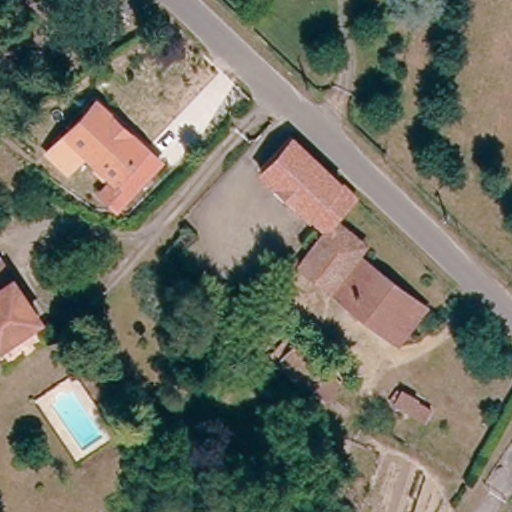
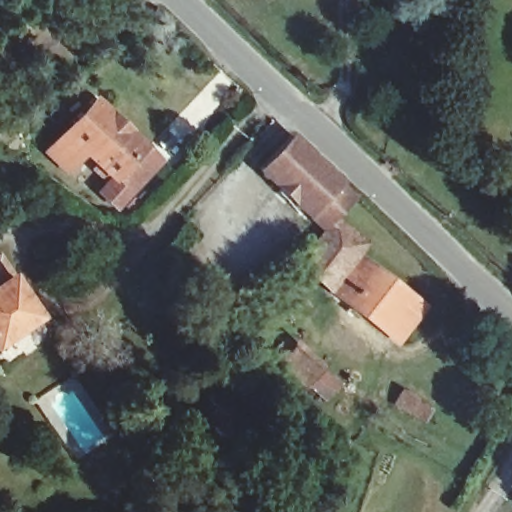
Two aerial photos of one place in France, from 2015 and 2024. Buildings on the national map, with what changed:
unchanged [(91,99),(108,114),(158,159),(111,208),(97,193),(110,179),(86,158),(69,177),(43,153),(91,99)]
unchanged [(257,167),(289,135),(353,197),(334,224),(332,223),(325,232),(321,229),(257,167)]
unchanged [(332,223),(334,224),(360,243),(352,253),(425,305),(398,339),(300,265),(325,232),(332,223)]
unchanged [(0,335),(0,271),(31,315),(0,335)]
unchanged [(399,392),(418,401),(412,415),(392,405),(399,392)]

